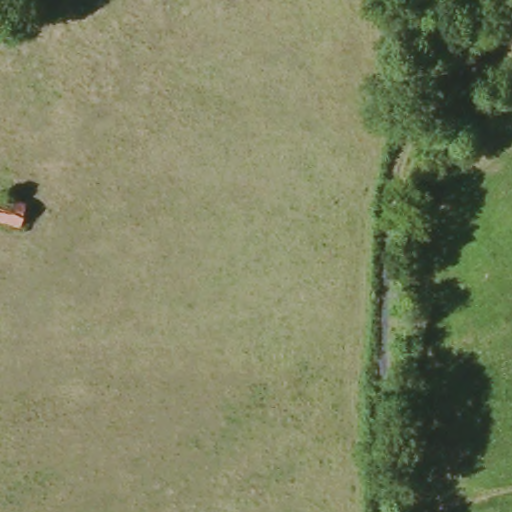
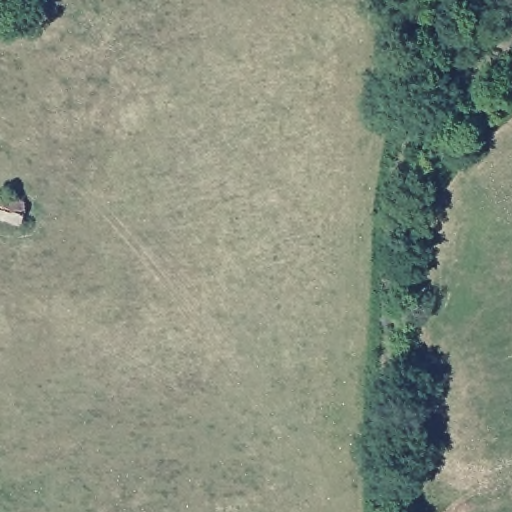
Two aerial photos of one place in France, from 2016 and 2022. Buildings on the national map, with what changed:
unchanged [(26,199),(21,223),(0,218),(0,197),(1,193),(26,199)]

